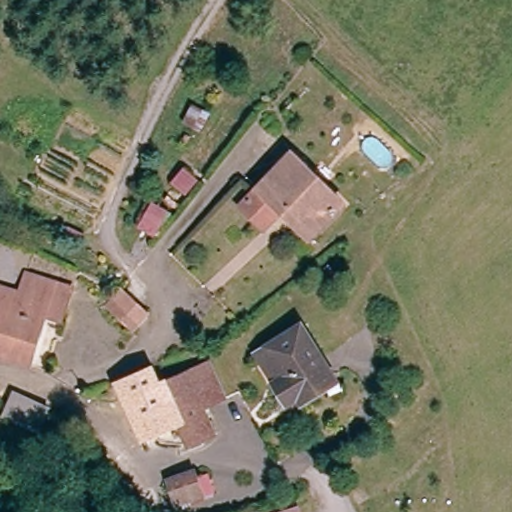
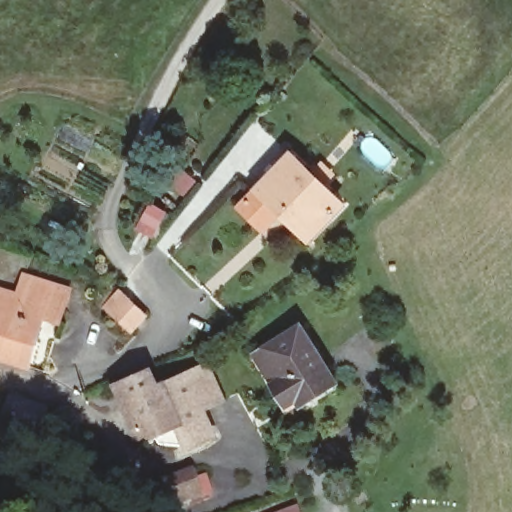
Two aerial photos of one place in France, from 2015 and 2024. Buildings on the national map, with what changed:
unchanged [(278,210),(264,231),(240,212),(255,191),(286,152),(340,194),(313,229),(310,235),(278,210)]
unchanged [(27,278),(68,290),(62,310),(45,305),(26,366),(0,359),(0,294),(20,300),(27,278)]
unchanged [(121,296),(145,320),(130,336),(106,311),(121,296)]
unchanged [(307,405),(302,398),(293,405),(277,385),(258,358),(266,351),(299,327),(334,373),(338,380),(307,405)]
unchanged [(146,373),(155,387),(187,372),(205,365),(221,400),(204,409),(212,433),(209,435),(190,444),(179,422),(141,438),(113,385),(146,373)]
unchanged [(45,410),(35,432),(23,430),(0,422),(0,416),(9,395),(45,410)]
unchanged [(196,483),(203,480),(207,496),(176,506),(172,495),(160,500),(155,486),(154,481),(167,476),(170,483),(193,475),(196,483)]
unchanged [(300,505),(303,512),(278,512),(300,505)]

